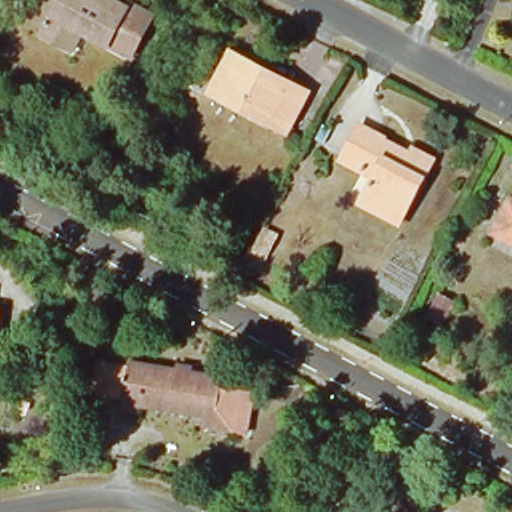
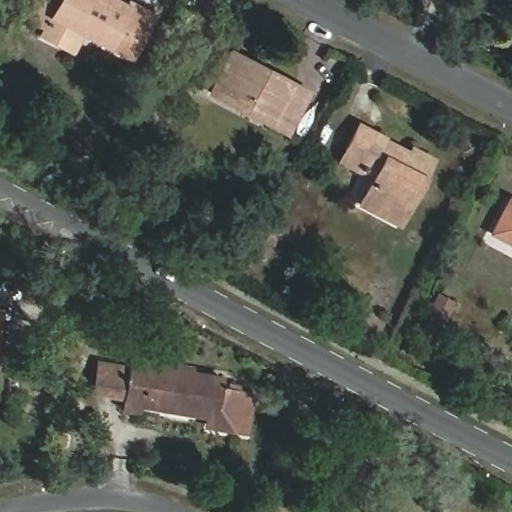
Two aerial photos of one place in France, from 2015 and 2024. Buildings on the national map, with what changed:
unchanged [(69,50),(41,35),(44,30),(27,20),(39,0),(115,0),(129,7),(131,4),(154,16),(131,59),(78,32),(69,50)]
unchanged [(284,134),(210,94),(233,51),(307,91),(284,134)]
unchanged [(364,209),(377,183),(345,165),(365,129),(435,166),(418,197),(412,195),(395,226),(364,209)]
unchanged [(509,198),(512,199),(512,241),(492,230),(509,198)]
unchanged [(443,325),(427,318),(438,295),(453,302),(443,325)]
unchanged [(205,431),(205,423),(120,410),(121,360),(194,366),(194,373),(242,378),(237,432),(205,431)]
unchanged [(293,506),(277,512),(274,512),(265,485),(284,478),(293,506)]

